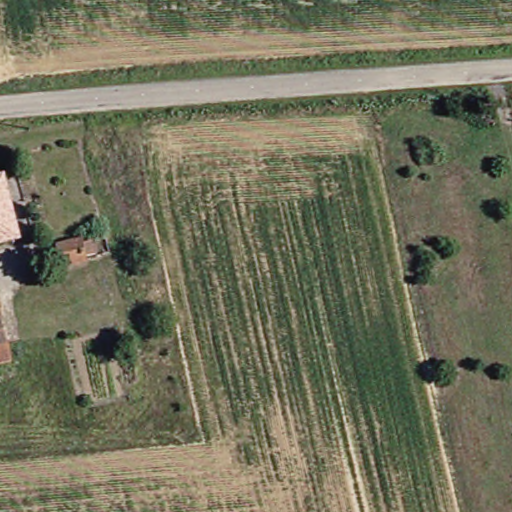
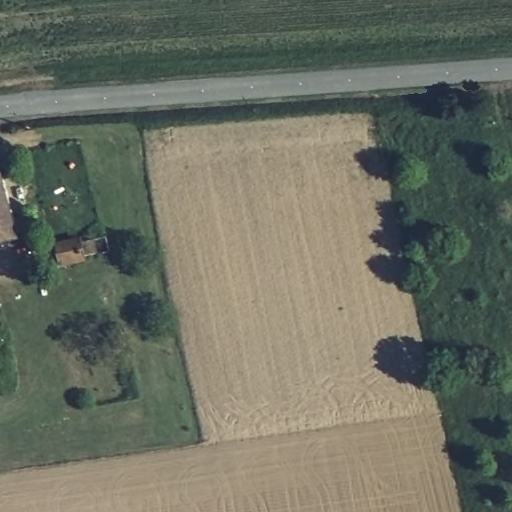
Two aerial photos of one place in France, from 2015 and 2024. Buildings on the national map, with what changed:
unchanged [(6,178),(20,239),(0,244),(0,179),(6,178)]
unchanged [(93,237),(100,267),(82,270),(79,262),(64,263),(58,241),(93,237)]

